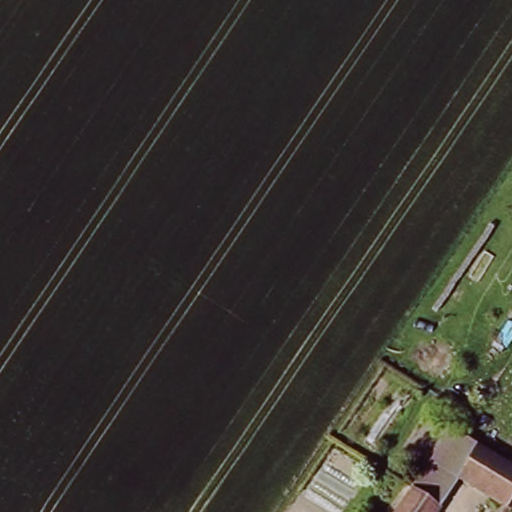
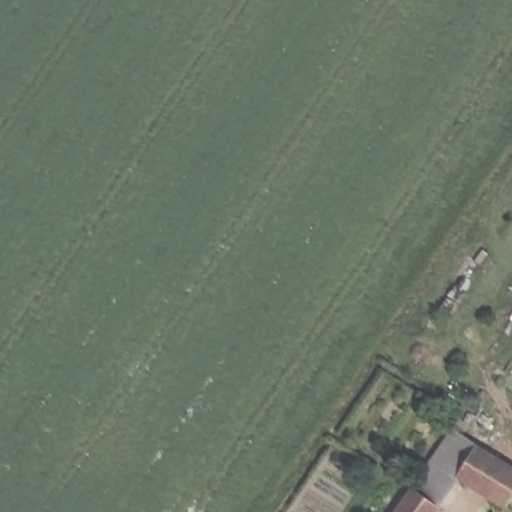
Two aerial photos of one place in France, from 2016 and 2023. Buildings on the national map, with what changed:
unchanged [(395,512),(413,488),(411,487),(454,425),(486,447),(487,445),(512,461),(512,512),(498,512),(505,501),(461,473),(434,512),(395,512)]

